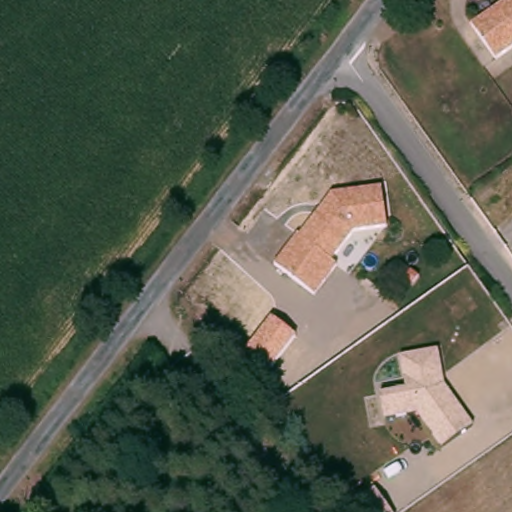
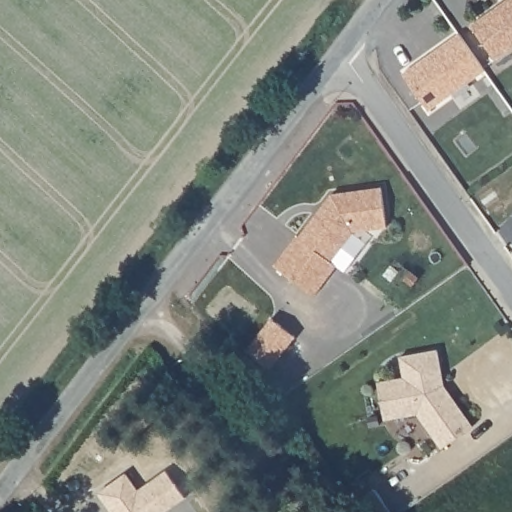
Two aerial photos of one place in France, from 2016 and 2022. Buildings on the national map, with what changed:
unchanged [(506,0),(512,0),(512,47),(502,54),(478,18),(506,0)]
new [(464,33),(490,70),(434,110),(408,73),(464,33)]
unchanged [(282,260),(337,187),(389,180),(395,224),(361,227),(340,255),(348,260),(322,289),(282,260)]
unchanged [(241,356),(274,317),(296,336),(263,376),(241,356)]
unchanged [(417,414),(385,418),(380,392),(406,387),(400,356),(439,348),(444,385),(473,426),(442,447),(417,414)]
new [(122,472),(136,496),(164,476),(183,502),(170,512),(110,512),(96,492),(122,472)]
unchanged [(376,487),(391,512),(360,512),(353,501),(376,487)]

